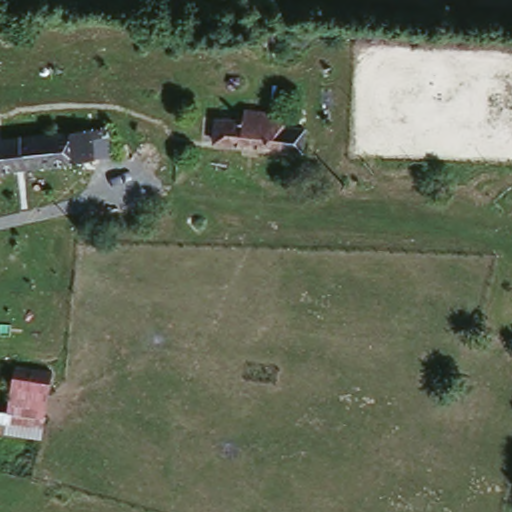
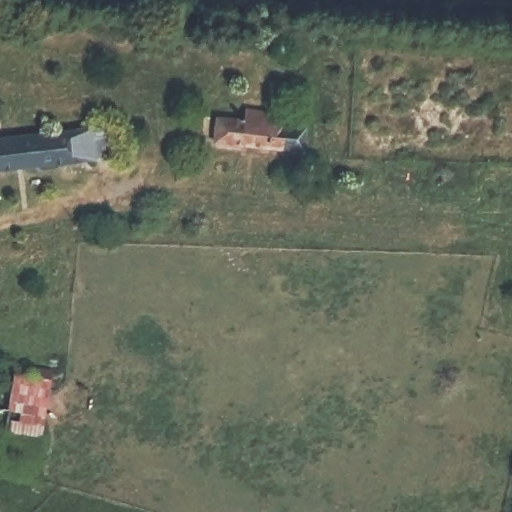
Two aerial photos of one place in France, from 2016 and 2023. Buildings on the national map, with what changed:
unchanged [(272,23),(270,45),(243,44),(244,23),(272,23)]
unchanged [(221,122),(250,124),(251,113),(291,116),(289,129),(308,129),(306,154),(218,145),(221,122)]
unchanged [(21,139),(110,134),(110,162),(0,171),(0,119),(18,119),(21,139)]
unchanged [(6,363),(56,372),(50,394),(1,385),(6,363)]
unchanged [(41,438),(0,429),(0,384),(1,385),(50,394),(41,438)]

